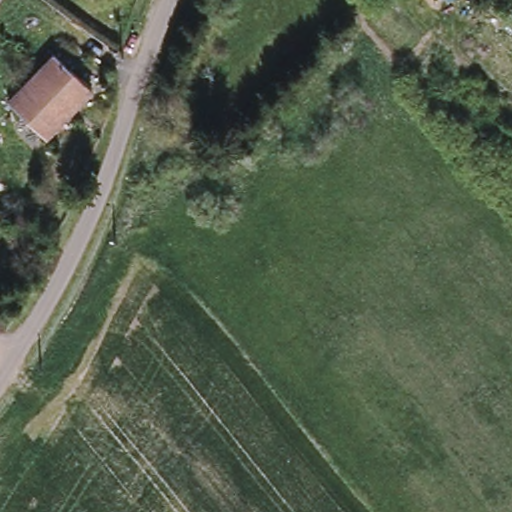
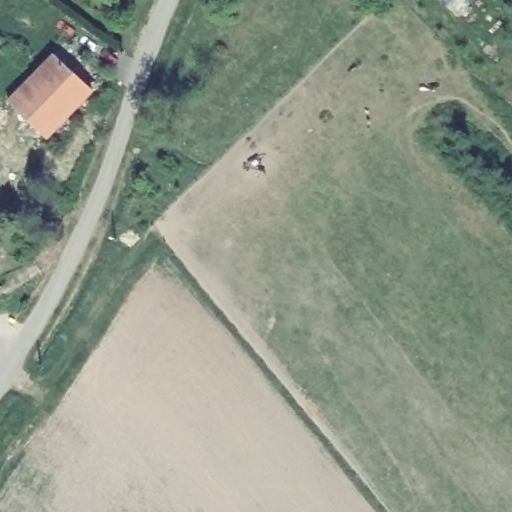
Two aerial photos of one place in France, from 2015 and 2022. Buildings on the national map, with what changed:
unchanged [(90,94),(46,137),(8,100),(53,56),(90,94)]

